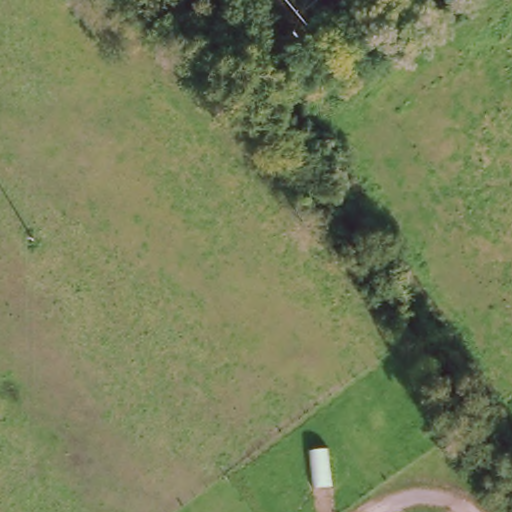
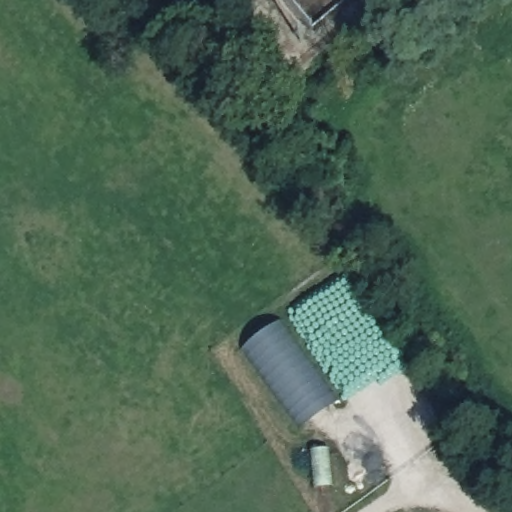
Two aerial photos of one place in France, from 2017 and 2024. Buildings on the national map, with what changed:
new [(282,326),(341,405),(298,431),(242,350),(282,326)]
unchanged [(327,453),(331,491),(316,492),(312,456),(327,453)]

